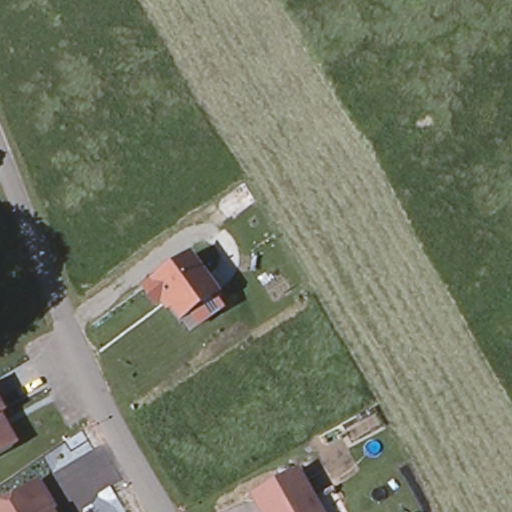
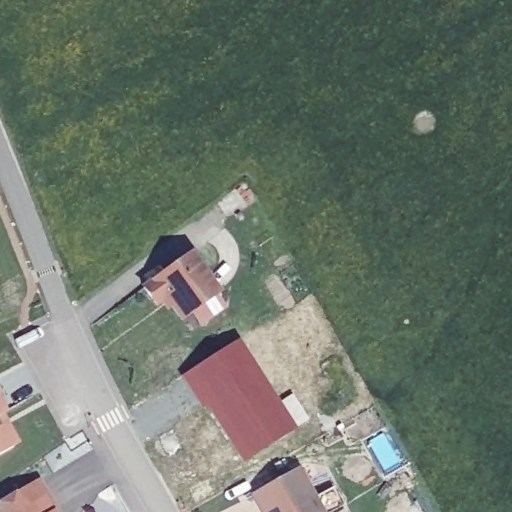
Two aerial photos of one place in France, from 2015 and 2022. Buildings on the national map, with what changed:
unchanged [(247,184),(258,203),(231,219),(221,199),(247,184)]
unchanged [(200,319),(191,306),(181,313),(171,299),(173,298),(167,290),(156,298),(144,282),(190,249),(218,286),(214,289),(223,301),(200,319)]
new [(234,343),(274,406),(292,395),(309,421),(242,463),(206,406),(201,408),(183,377),(234,343)]
unchanged [(0,415),(0,408),(3,413),(0,415)]
unchanged [(11,449),(0,455),(0,417),(13,442),(11,449)]
unchanged [(245,494),(289,469),(306,498),(326,487),(340,512),(255,512),(245,494)]
unchanged [(1,509),(37,488),(51,512),(3,512),(1,509)]

